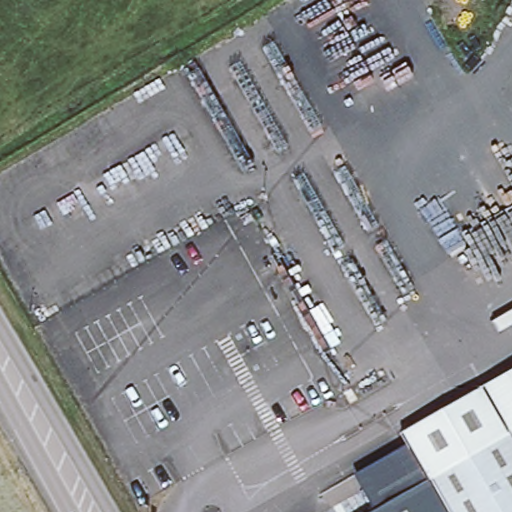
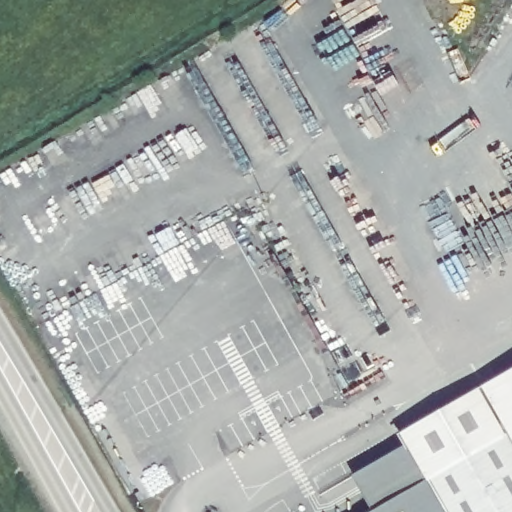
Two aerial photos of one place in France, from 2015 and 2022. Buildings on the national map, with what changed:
unchanged [(397,435),(512,371),(512,512),(370,512),(423,482),(397,435)]

